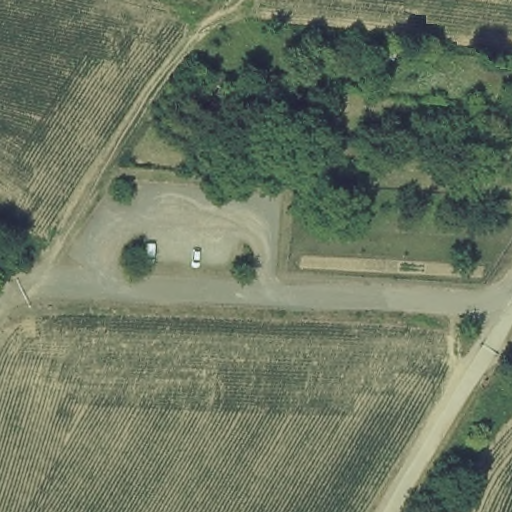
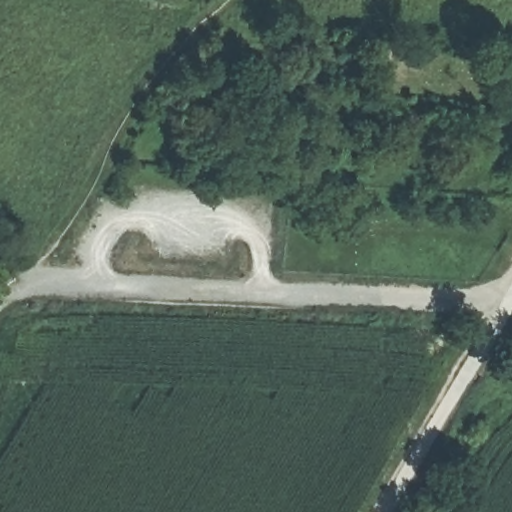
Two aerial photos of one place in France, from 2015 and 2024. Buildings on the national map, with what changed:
[]

